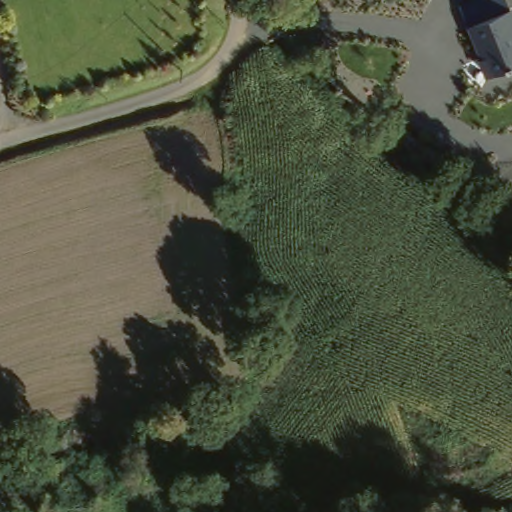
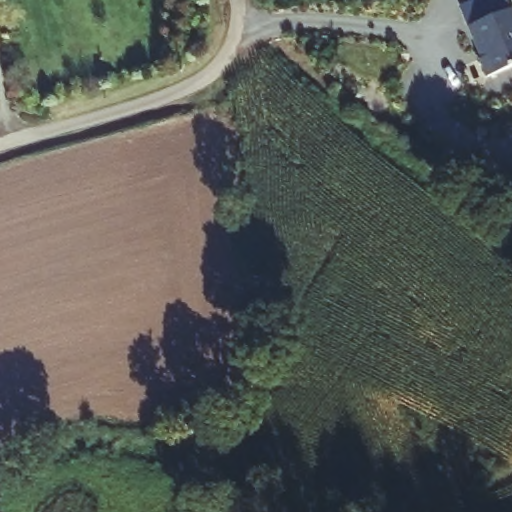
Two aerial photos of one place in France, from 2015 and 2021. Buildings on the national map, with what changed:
unchanged [(469,25),(460,1),(462,0),(508,0),(512,11),(512,69),(485,78),(465,28),(469,25)]

